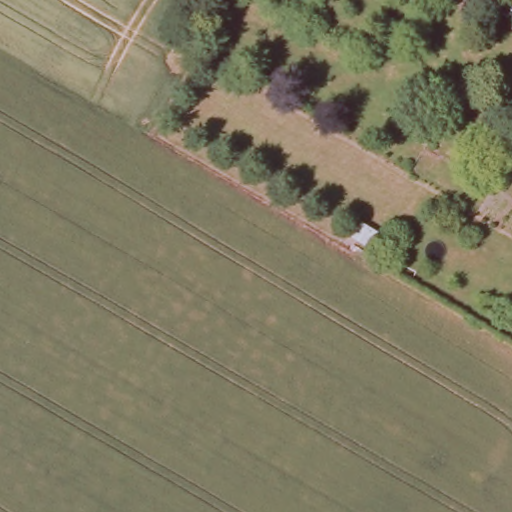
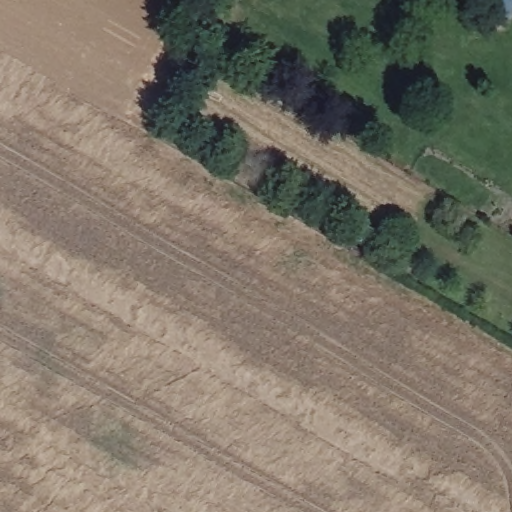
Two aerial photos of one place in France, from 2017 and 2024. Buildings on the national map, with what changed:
unchanged [(497,14),(505,0),(512,0),(512,12),(508,19),(497,14)]

